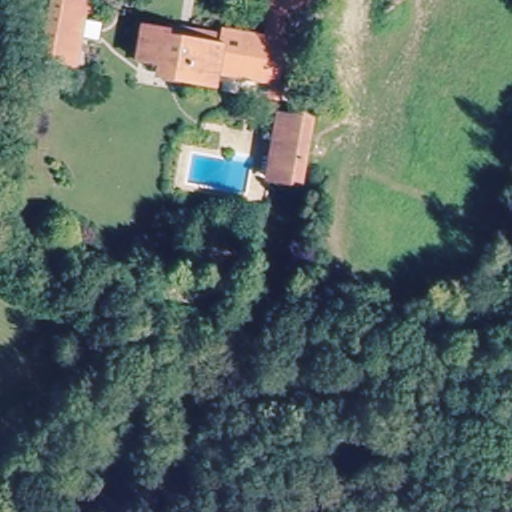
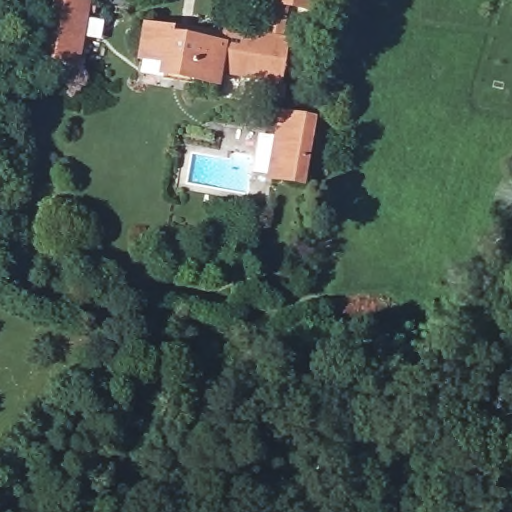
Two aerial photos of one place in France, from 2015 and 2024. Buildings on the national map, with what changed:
unchanged [(53,0),(66,0),(83,2),(73,65),(42,60),(53,0)]
unchanged [(301,2),(290,0),(302,0),(301,2)]
unchanged [(141,54),(146,21),(169,25),(169,21),(223,30),(215,81),(165,72),(166,57),(141,54)]
unchanged [(224,28),(285,39),(277,85),(255,81),(253,92),(213,87),(215,81),(223,34),(223,30),(224,28)]
unchanged [(278,116),(306,121),(297,180),(268,175),(278,116)]

